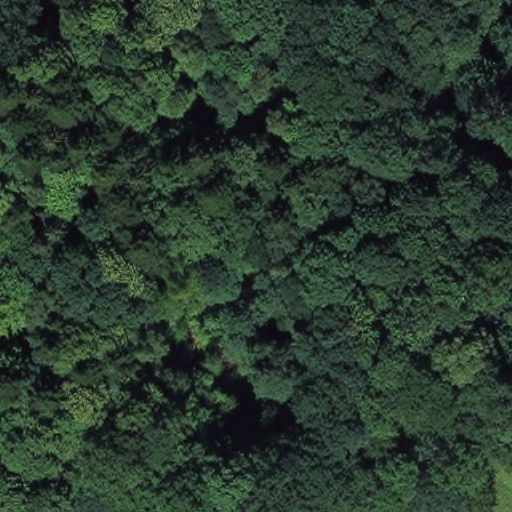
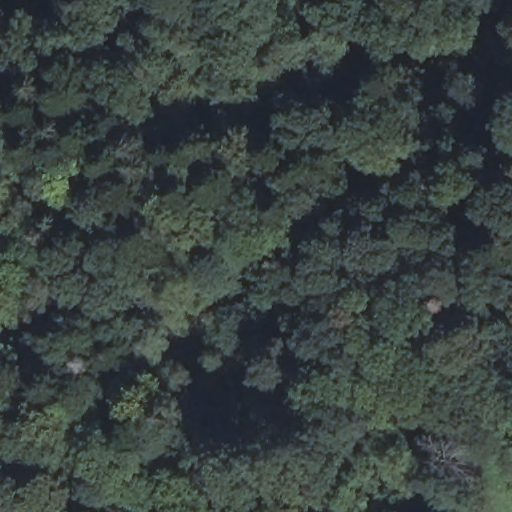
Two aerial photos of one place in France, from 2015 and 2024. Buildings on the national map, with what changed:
[]

